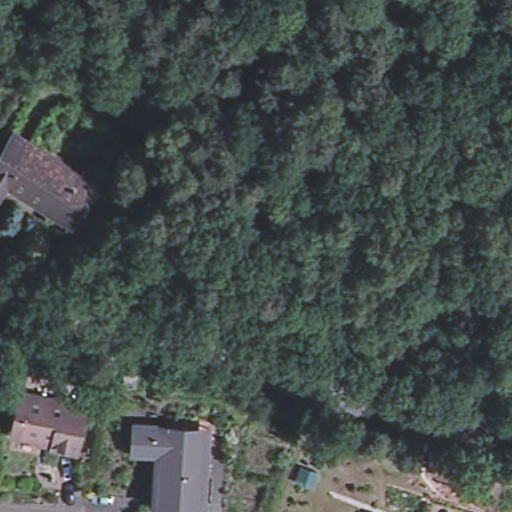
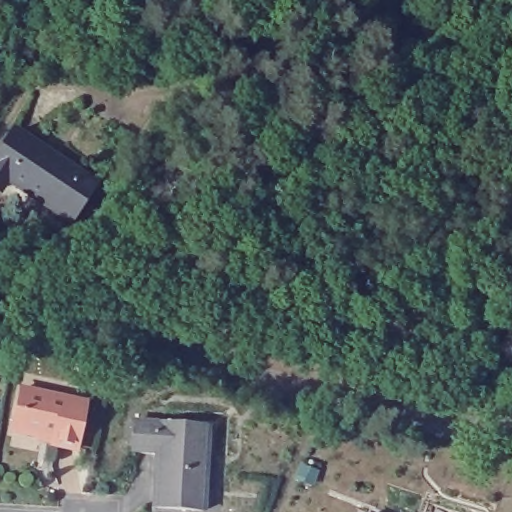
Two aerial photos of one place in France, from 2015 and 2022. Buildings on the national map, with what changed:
unchanged [(69,221),(5,177),(0,184),(0,150),(14,130),(93,185),(69,221)]
unchanged [(18,412),(23,389),(87,402),(77,449),(53,444),(55,438),(21,431),(15,430),(18,412)]
unchanged [(189,422),(210,423),(210,436),(206,504),(156,502),(158,450),(135,448),(136,420),(189,422)]

